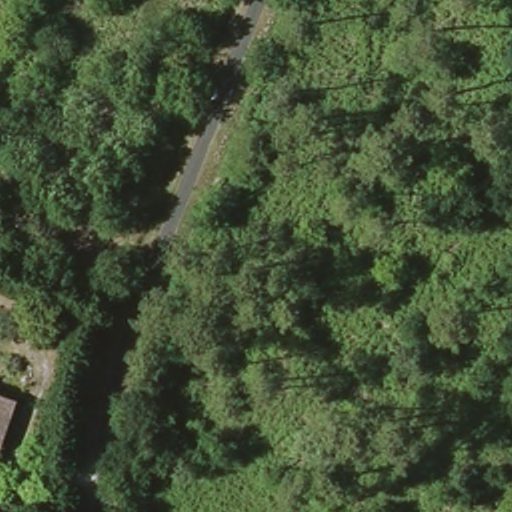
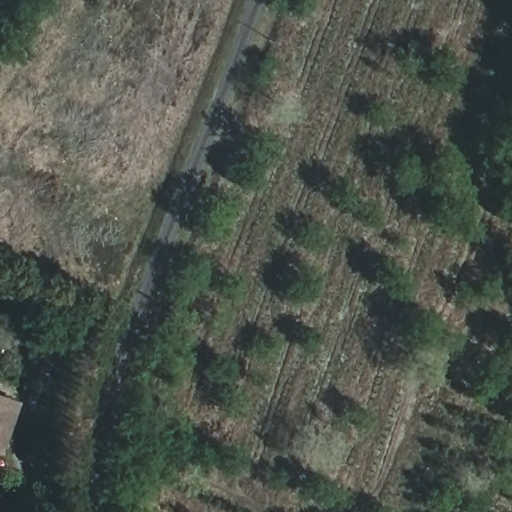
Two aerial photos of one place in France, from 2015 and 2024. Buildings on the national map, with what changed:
unchanged [(56,290),(15,274),(22,252),(63,270),(56,290)]
unchanged [(0,455),(0,398),(17,404),(1,455),(0,455)]

